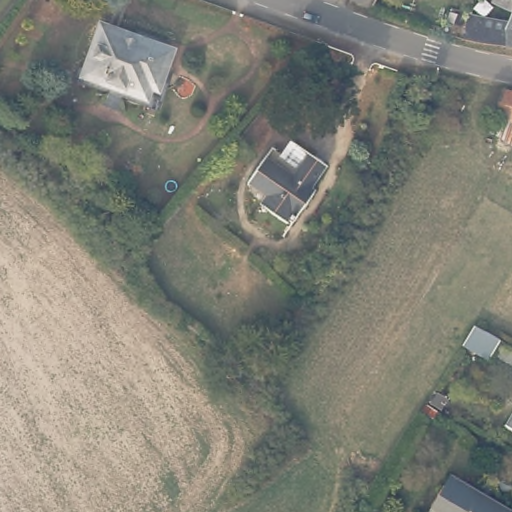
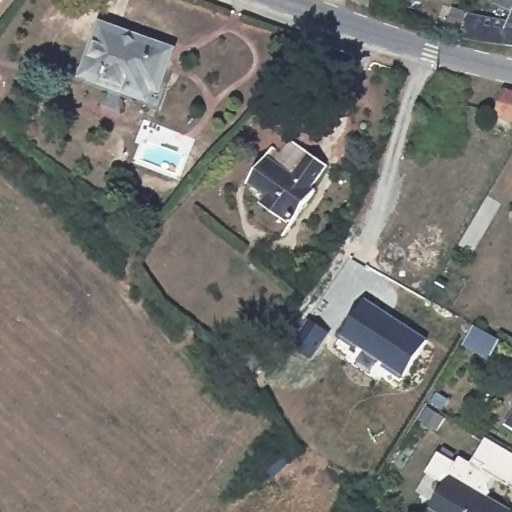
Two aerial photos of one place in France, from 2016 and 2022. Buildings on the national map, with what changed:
unchanged [(512,0),(512,7),(494,0),(512,0)]
unchanged [(463,15),(461,25),(442,22),(444,12),(463,15)]
unchanged [(464,37),(467,12),(510,19),(512,14),(512,45),(481,40),(464,37)]
unchanged [(159,114),(146,109),(148,102),(84,79),(103,27),(175,52),(164,84),(170,87),(159,114)]
unchanged [(504,89),(512,91),(512,120),(496,116),(504,89)]
unchanged [(327,164),(314,186),(317,189),(294,220),(292,219),(289,222),(261,202),(266,195),(249,182),(269,155),(277,160),(292,139),(327,164)]
new [(365,298),(383,310),(382,311),(407,327),(408,327),(428,340),(402,378),(382,366),(385,362),(360,345),(357,349),(339,337),(365,298)]
unchanged [(500,340),(489,357),(463,342),(474,325),(500,340)]
unchanged [(267,332),(258,346),(250,340),(259,326),(267,332)]
unchanged [(449,398),(442,411),(426,402),(434,389),(449,398)]
unchanged [(512,419),(512,428),(508,426),(512,419)]
unchanged [(511,512),(427,512),(449,475),(511,512)]

